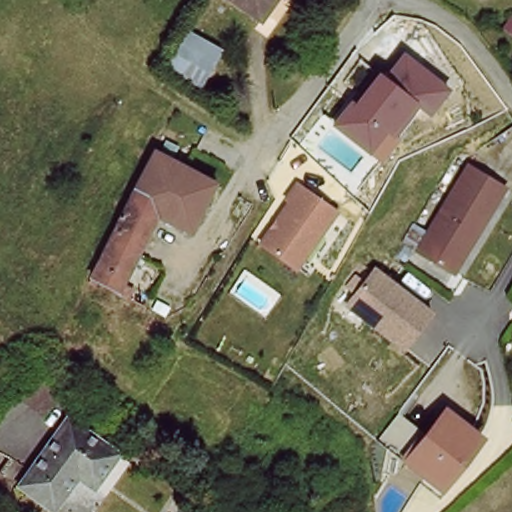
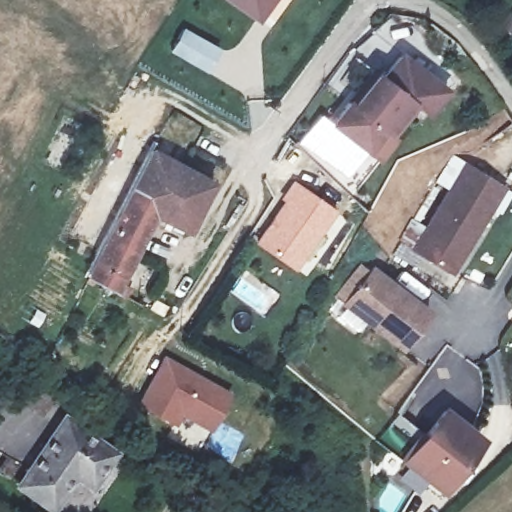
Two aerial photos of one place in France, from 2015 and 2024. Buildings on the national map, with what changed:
unchanged [(235,0),(275,0),(263,19),(235,0)]
unchanged [(232,59),(208,103),(164,75),(189,33),(232,59)]
unchanged [(402,143),(387,130),(367,154),(339,127),(381,79),(388,85),(405,60),(445,93),(402,143)]
unchanged [(196,236),(157,222),(121,297),(88,280),(154,151),(213,185),(196,236)]
unchanged [(438,268),(413,248),(475,170),(507,197),(469,247),(446,275),(438,268)]
unchanged [(299,272),(258,244),(295,187),(337,215),(299,272)]
unchanged [(373,273),(430,317),(404,352),(346,308),(373,273)]
new [(167,356),(232,393),(212,432),(183,416),(177,428),(140,407),(167,356)]
unchanged [(415,466),(393,447),(413,419),(437,438),(415,466)]
unchanged [(437,438),(440,441),(457,419),(486,442),(447,492),(415,466),(437,438)]
unchanged [(125,461),(104,490),(81,474),(54,508),(20,483),(68,420),(125,461)]

